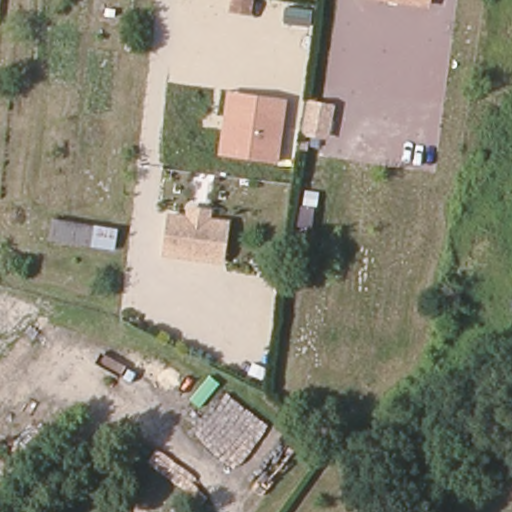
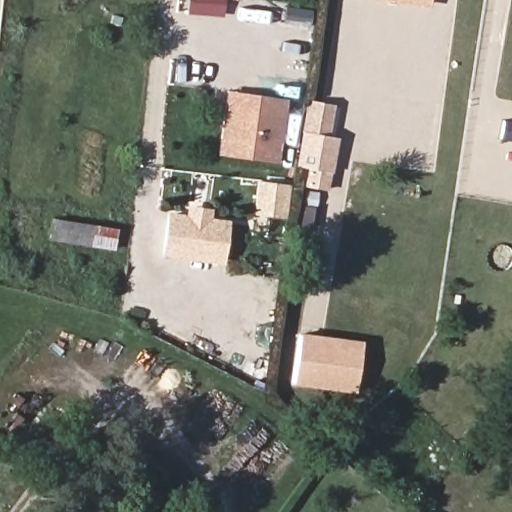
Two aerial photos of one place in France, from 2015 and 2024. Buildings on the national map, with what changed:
unchanged [(227,13),(229,0),(253,0),(251,15),(227,13)]
unchanged [(402,0),(432,0),(431,5),(402,0)]
unchanged [(239,110),(241,96),(287,102),(278,165),(227,156),(234,110),(239,110)]
unchanged [(322,134),(302,130),(307,101),(326,103),(322,134)]
new [(284,218),(252,215),(256,180),(288,183),(284,218)]
unchanged [(184,211),(204,214),(202,223),(221,226),(215,263),(159,254),(165,217),(183,220),(184,211)]
unchanged [(114,250),(47,242),(51,216),(121,227),(114,250)]
new [(355,393),(292,385),(298,333),(362,341),(355,393)]

